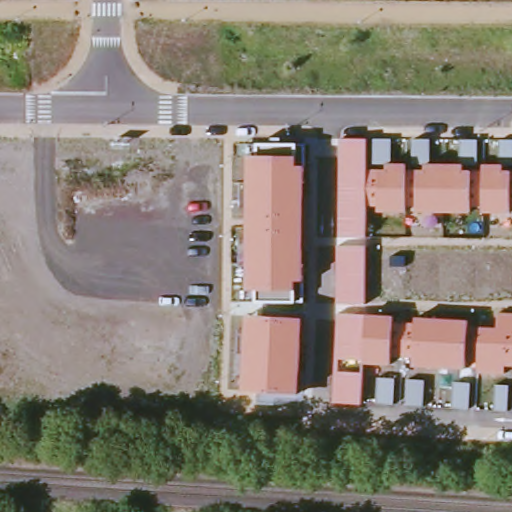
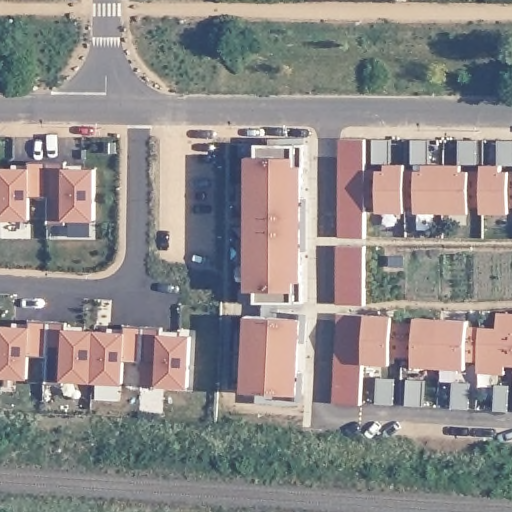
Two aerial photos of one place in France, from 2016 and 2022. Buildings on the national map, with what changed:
unchanged [(340,140),(391,141),(390,164),(408,165),(406,212),(378,212),(378,206),(368,206),(366,237),(339,237),(340,140)]
unchanged [(430,140),(430,164),(457,164),(458,140),(475,141),(475,165),(463,165),(463,170),(471,171),(470,212),(417,212),(416,169),(411,169),(411,140),(430,140)]
unchanged [(512,206),(511,206),(511,215),(483,214),(484,164),(498,164),(498,141),(512,141),(512,206)]
unchanged [(297,142),(297,166),(306,166),(305,282),(303,282),(302,305),(237,302),(237,293),(245,292),(245,266),(239,266),(240,238),(246,238),(247,207),(241,207),(241,180),(246,180),(247,156),(239,156),(239,142),(256,142),(297,142)]
new [(68,221),(48,222),(48,192),(31,193),(31,220),(0,219),(0,168),(31,168),(31,161),(65,162),(65,168),(96,168),(96,220),(68,221)]
unchanged [(366,248),(365,305),(336,304),(337,248),(366,248)]
unchanged [(498,312),(512,313),(512,366),(505,366),(505,377),(475,374),(477,326),(497,327),(498,312)]
unchanged [(393,317),(394,322),(416,323),(416,317),(469,320),(466,369),(465,369),(411,366),(412,359),(392,358),(391,367),(361,365),(361,362),(334,360),(336,313),(393,317)]
unchanged [(310,320),(305,407),(256,403),(256,392),(242,390),(243,372),(237,372),(238,354),(245,355),(246,317),(310,320)]
new [(157,384),(158,360),(141,357),(126,360),(124,383),(62,380),(47,378),(48,352),(31,353),(29,378),(0,376),(0,326),(32,327),(32,321),(65,323),(65,328),(127,332),(128,326),(160,328),(160,334),(192,336),(190,386),(157,384)]
unchanged [(363,372),(362,404),(333,402),(335,371),(363,372)]

